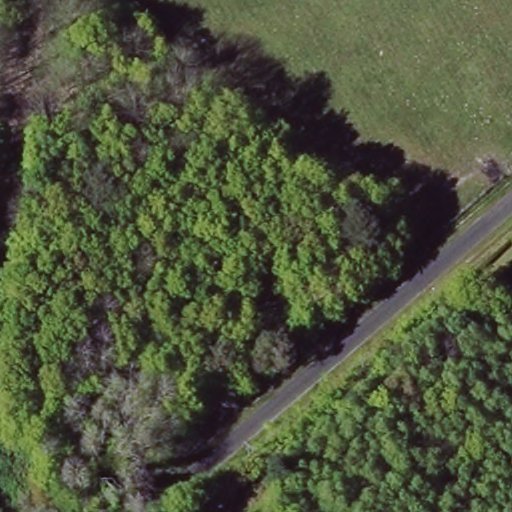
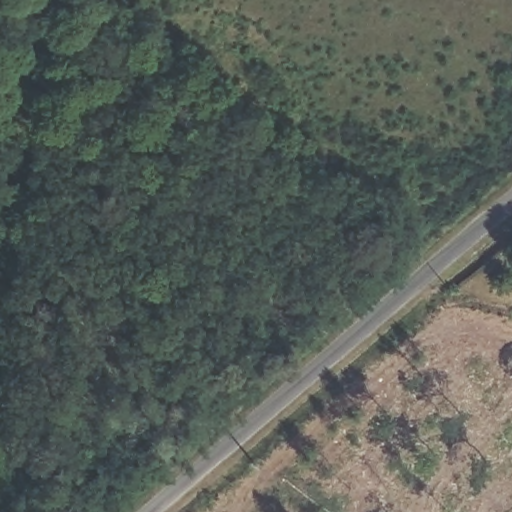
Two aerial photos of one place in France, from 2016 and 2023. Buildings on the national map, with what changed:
[]

